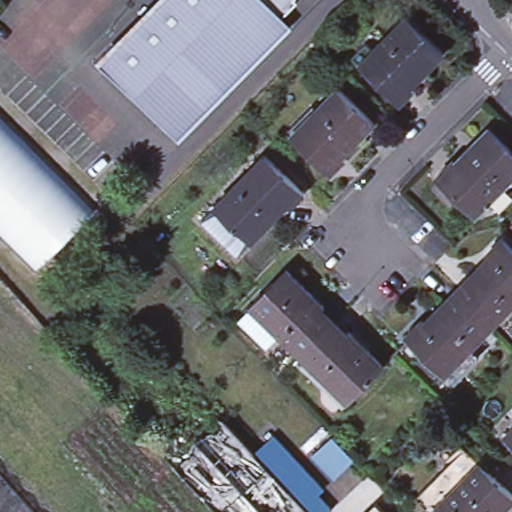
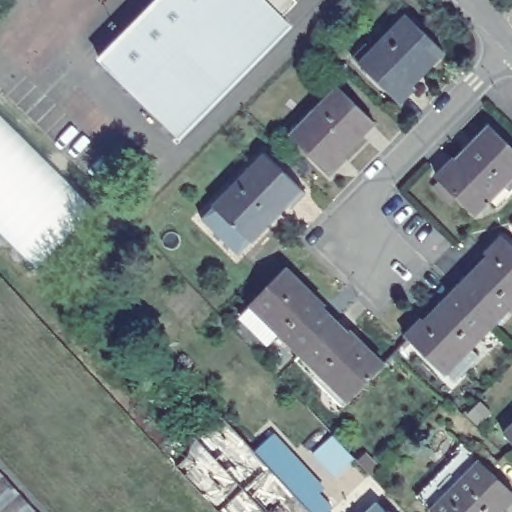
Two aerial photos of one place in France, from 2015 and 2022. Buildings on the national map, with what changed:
unchanged [(160,132),(94,67),(160,0),(288,0),(289,5),(291,8),(277,23),(282,29),(200,113),(171,143),(160,132)]
unchanged [(378,48),(411,14),(449,50),(402,99),(357,56),(370,42),(378,48)]
unchanged [(291,135),(338,86),(375,122),(329,171),(291,135)]
unchanged [(22,267),(0,245),(0,118),(87,209),(22,267)]
unchanged [(495,208),(487,201),(475,214),(439,177),(489,127),(512,150),(512,190),(495,208)]
unchanged [(296,200),(289,194),(278,205),(283,210),(259,235),(257,234),(247,245),(248,246),(245,249),(208,213),(270,147),(310,185),(296,200)]
unchanged [(510,227),(512,225),(512,230),(510,227)]
unchanged [(492,328),(457,292),(489,260),(486,256),(503,240),(512,248),(512,308),(492,328)]
unchanged [(282,328),(271,340),(246,315),(257,305),(255,302),(291,266),(329,303),(327,306),(340,318),(323,335),(314,345),(306,353),(282,328)]
unchanged [(425,325),(457,292),(492,328),(470,350),(479,358),(454,384),(445,376),(444,377),(405,339),(422,322),(425,325)]
unchanged [(349,407),(301,358),(306,353),(314,345),(323,335),(340,318),(352,330),(354,328),(392,365),(349,407)]
unchanged [(507,435),(512,430),(512,440),(507,435)]
unchanged [(272,434),(299,463),(285,477),(280,481),(253,452),(272,434)]
unchanged [(315,457),(334,438),(335,438),(347,450),(359,462),(357,463),(337,481),(327,470),(315,457)]
unchanged [(284,512),(266,492),(244,512),(217,512),(205,498),(197,491),(235,456),(241,463),(253,452),(280,481),(309,512),(284,512)]
unchanged [(477,456),(490,472),(492,471),(512,493),(512,512),(434,512),(425,501),(477,456)]
unchanged [(299,463),(317,482),(312,488),(332,509),(329,512),(309,512),(280,481),(285,477),(299,463)]
unchanged [(0,512),(0,472),(35,512),(0,512)]
unchanged [(284,512),(244,512),(266,492),(284,512)]
unchanged [(387,512),(371,512),(380,504),(387,512)]

